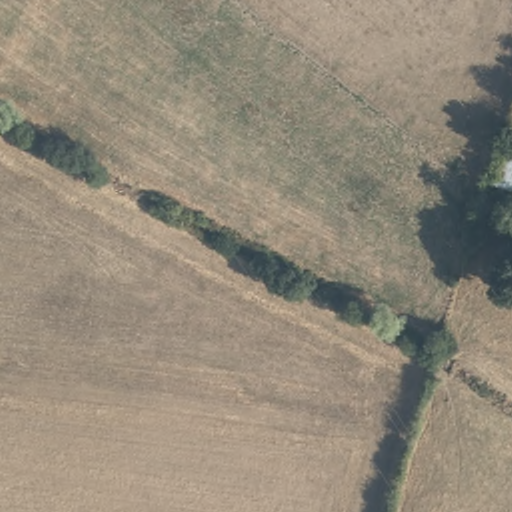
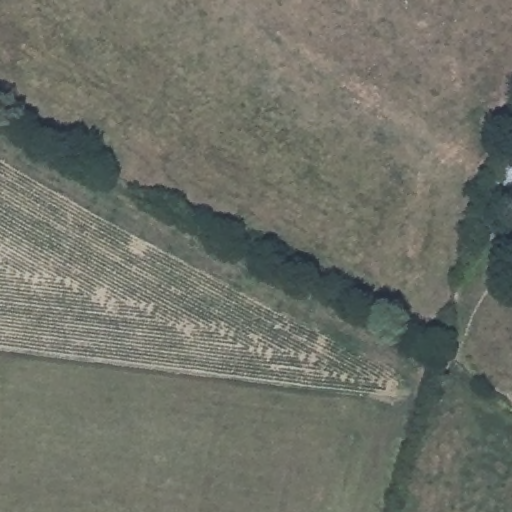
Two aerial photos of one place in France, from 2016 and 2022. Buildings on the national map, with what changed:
unchanged [(512,187),(491,183),(509,121),(512,122),(512,187)]

